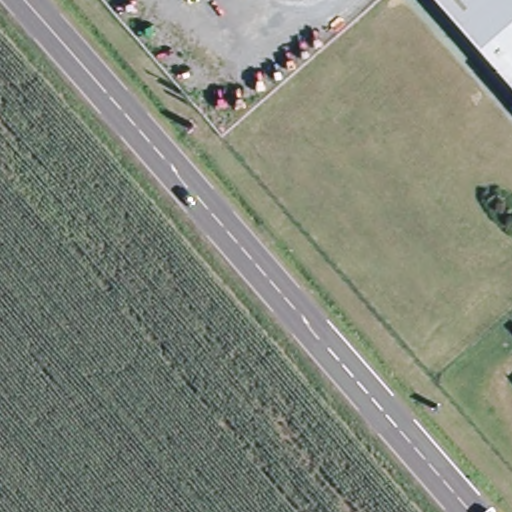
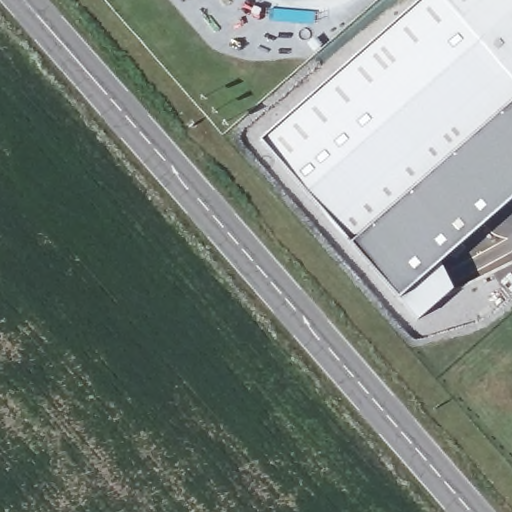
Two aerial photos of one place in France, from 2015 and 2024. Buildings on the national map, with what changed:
new [(512,200),(441,262),(452,289),(416,322),(400,301),(351,244),(260,140),(420,0),(439,0),(512,84),(512,200)]
unchanged [(512,0),(512,83),(439,0),(512,0)]

